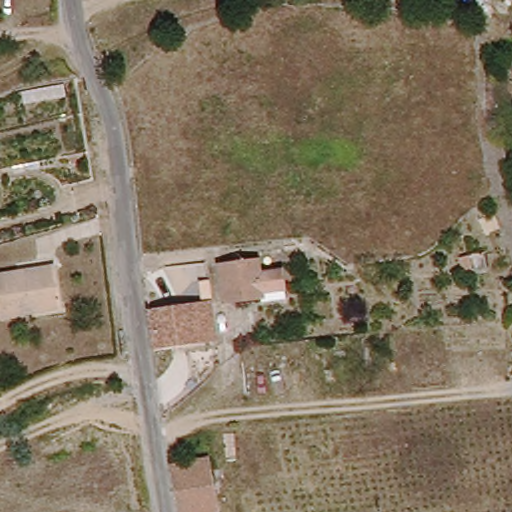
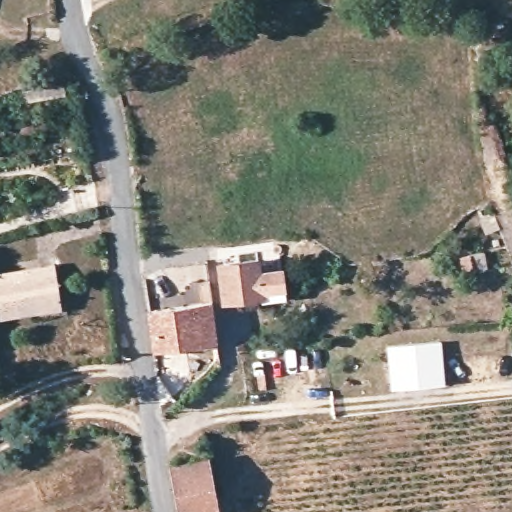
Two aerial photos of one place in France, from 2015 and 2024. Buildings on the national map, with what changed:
unchanged [(476,210),(487,203),(493,216),(480,221),(476,210)]
unchanged [(260,301),(222,305),(218,267),(256,263),(257,275),(272,273),(276,273),(278,288),(278,291),(275,291),(260,294),(260,301)]
unchanged [(0,272),(15,270),(18,274),(37,270),(40,268),(53,266),(61,307),(1,319),(0,312),(0,272)]
unchanged [(216,320),(221,348),(201,351),(200,345),(155,350),(149,310),(213,302),(216,320)]
new [(441,341),(445,384),(393,389),(387,346),(441,341)]
unchanged [(179,512),(170,464),(208,457),(220,512),(179,512)]

